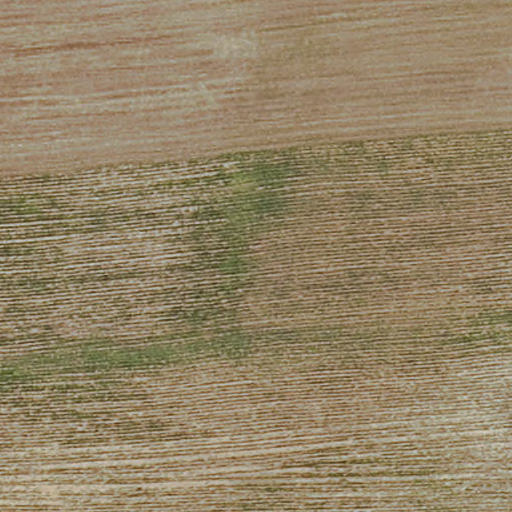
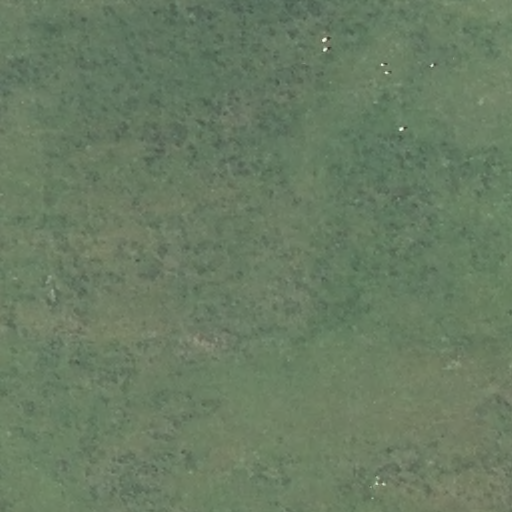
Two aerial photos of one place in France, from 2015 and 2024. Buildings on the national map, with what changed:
[]

